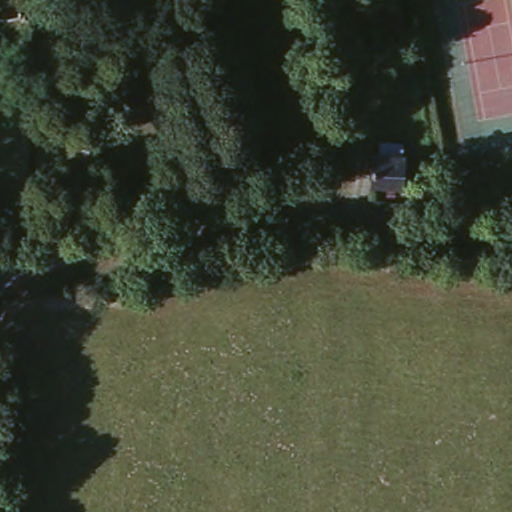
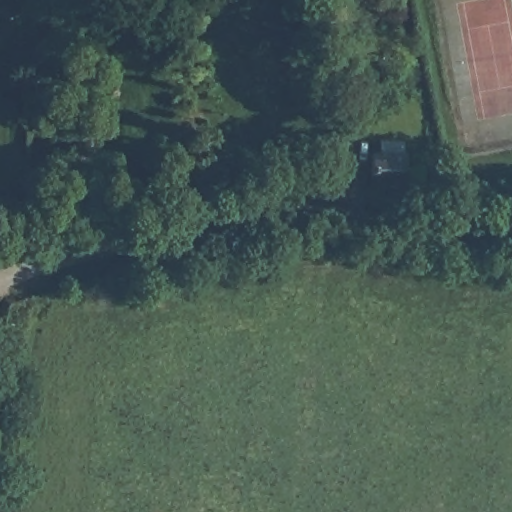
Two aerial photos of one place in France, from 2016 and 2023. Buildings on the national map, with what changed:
unchanged [(79,142),(81,137),(85,134),(90,134),(93,135),(97,137),(101,142),(101,147),(99,153),(95,156),(91,157),(87,156),(82,154),(81,151),(80,149),(79,146),(79,142)]
unchanged [(398,156),(398,182),(368,180),(370,154),(398,156)]

